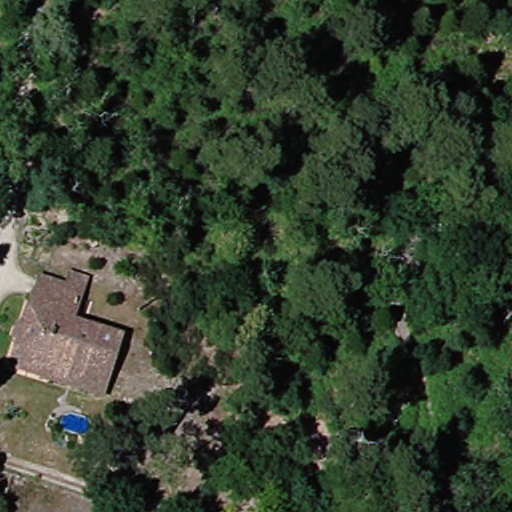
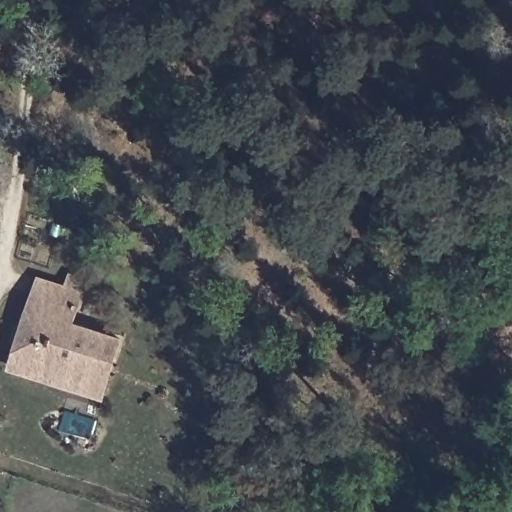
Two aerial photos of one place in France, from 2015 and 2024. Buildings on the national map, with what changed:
unchanged [(34,300),(43,276),(134,310),(126,330),(100,395),(15,365),(34,300)]

